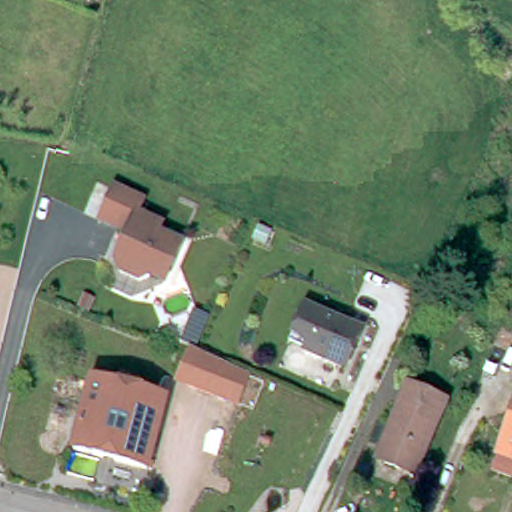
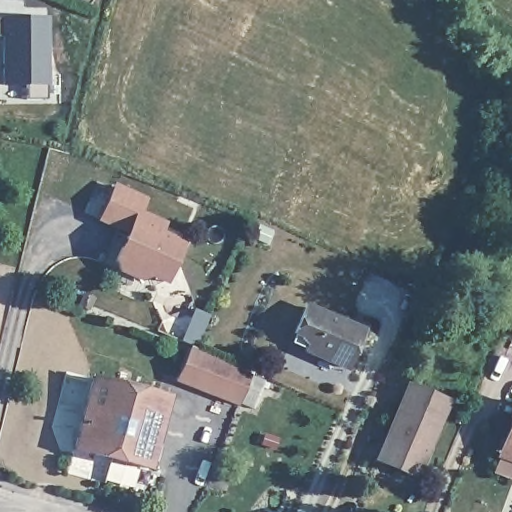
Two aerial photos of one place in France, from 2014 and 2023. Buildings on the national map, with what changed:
new [(48,85),(48,99),(27,100),(26,85),(3,86),(0,36),(0,37),(0,18),(0,16),(51,14),(54,84),(48,85)]
unchanged [(148,270),(138,275),(120,266),(116,254),(131,226),(101,211),(118,180),(148,195),(142,208),(165,220),(161,228),(184,240),(175,259),(165,278),(148,270)]
unchanged [(409,296),(414,284),(428,290),(422,303),(409,296)]
unchanged [(294,325),(305,300),(361,324),(345,361),(303,341),(290,335),(294,325)]
unchanged [(241,405),(175,380),(189,345),(253,373),(241,405)]
unchanged [(146,464),(73,445),(92,375),(165,394),(146,464)]
unchanged [(388,437),(406,388),(444,403),(416,478),(384,466),(378,463),(388,437)]
unchanged [(492,455),(512,404),(512,464),(492,455)]

